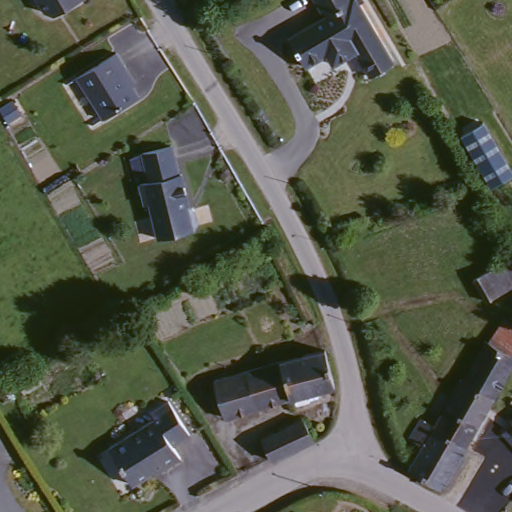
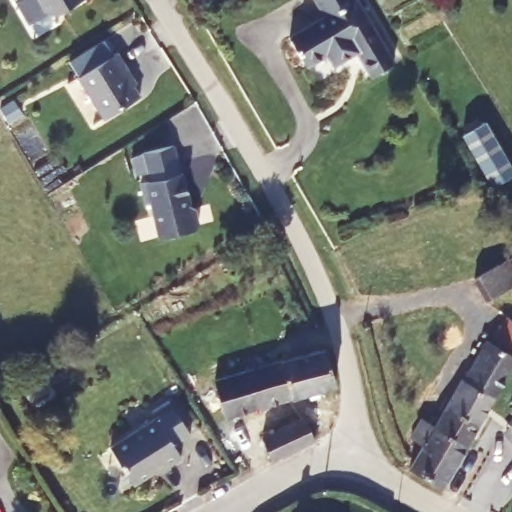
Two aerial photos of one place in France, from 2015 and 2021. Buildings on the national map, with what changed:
unchanged [(45,8),(41,0),(76,0),(53,11),(45,8)]
unchanged [(358,42),(335,57),(330,50),(311,60),(294,30),(330,8),(325,0),(368,0),(401,53),(375,69),(358,42)]
unchanged [(120,55),(141,97),(110,118),(82,76),(120,55)]
unchanged [(485,121),(512,166),(512,174),(486,188),(455,138),(485,121)]
unchanged [(180,164),(184,164),(187,196),(193,196),(196,221),(154,226),(150,198),(144,199),(140,172),(151,171),(149,154),(148,141),(177,135),(178,139),(180,164)]
unchanged [(480,275),(512,262),(512,289),(492,299),(480,275)]
unchanged [(471,369),(494,325),(500,329),(512,305),(512,369),(502,386),(471,369)]
unchanged [(220,378),(328,342),(338,377),(296,393),(235,413),(220,378)]
unchanged [(427,436),(415,428),(431,404),(443,411),(466,366),(471,369),(502,386),(475,432),(448,478),(414,460),(427,436)]
unchanged [(167,462),(164,458),(137,475),(114,436),(156,408),(154,402),(170,392),(192,427),(176,436),(186,450),(167,462)]
unchanged [(282,459),(275,449),(270,435),(305,419),(313,433),(318,443),(282,459)]
unchanged [(312,511),(313,512),(312,512),(312,511)]

